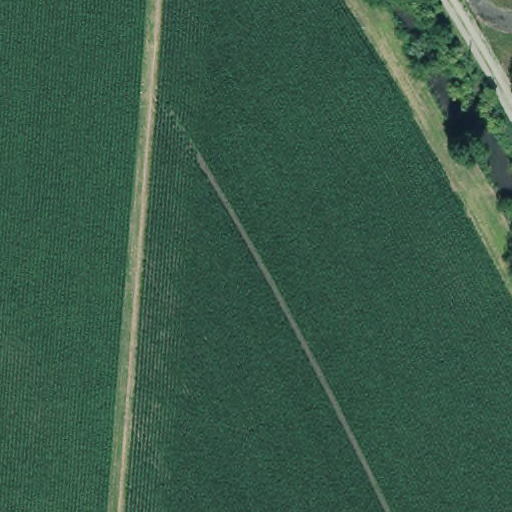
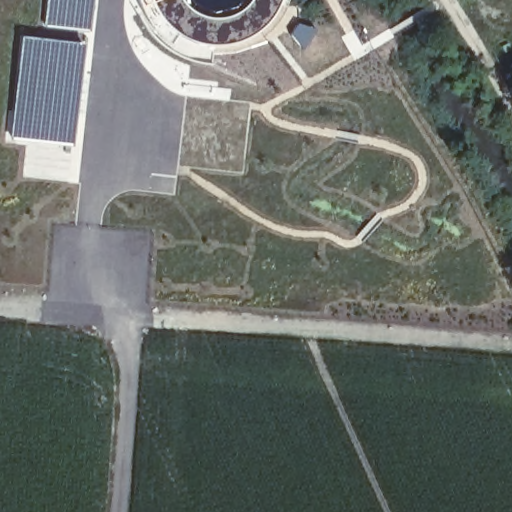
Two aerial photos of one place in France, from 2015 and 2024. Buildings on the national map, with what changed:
new [(93,32),(42,23),(45,0),(98,0),(93,32)]
new [(81,41),(72,146),(10,138),(20,37),(81,41)]

